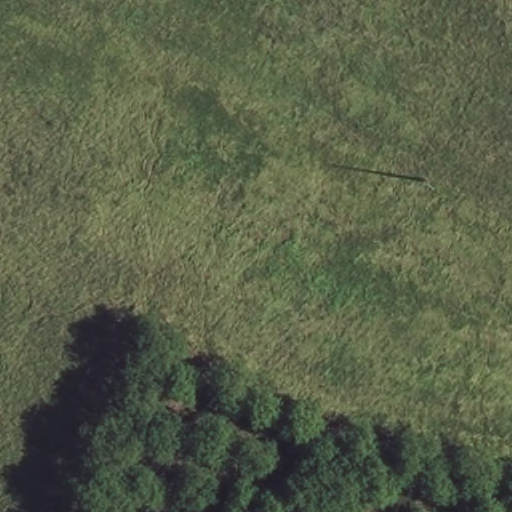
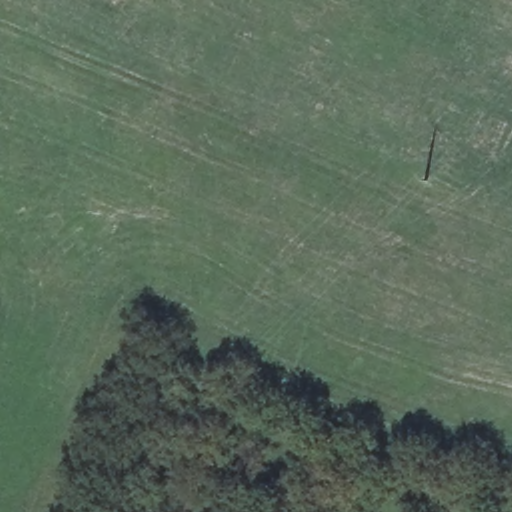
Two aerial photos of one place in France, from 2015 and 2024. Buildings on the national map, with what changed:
[]

